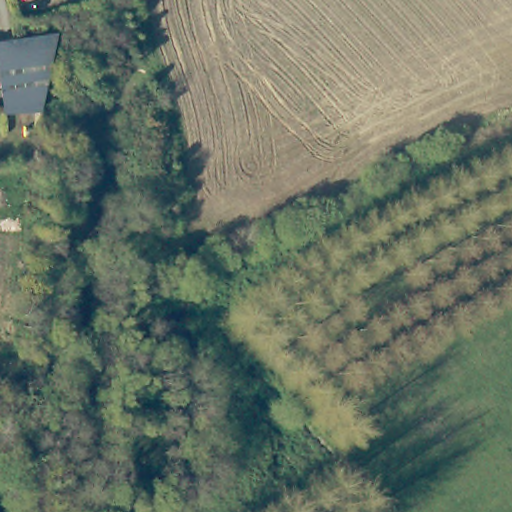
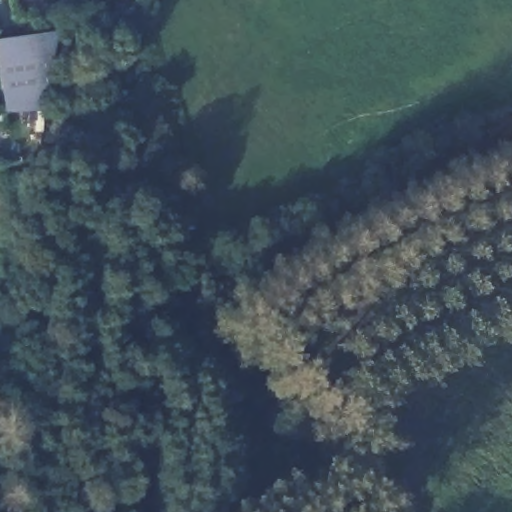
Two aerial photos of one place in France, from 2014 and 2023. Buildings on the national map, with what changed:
unchanged [(42,109),(5,112),(0,79),(0,39),(59,30),(42,109)]

